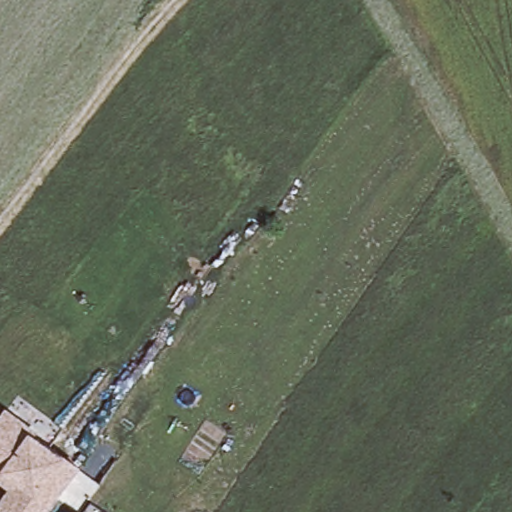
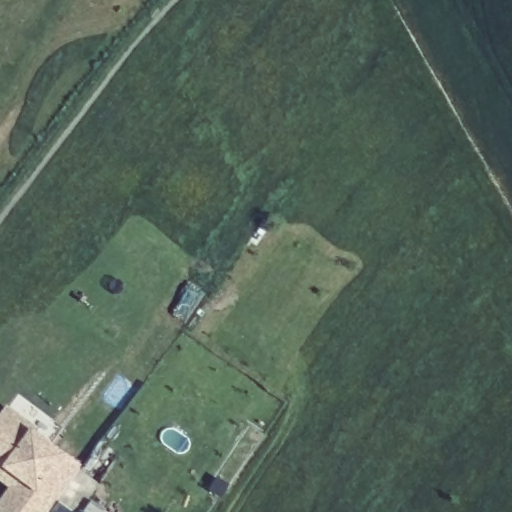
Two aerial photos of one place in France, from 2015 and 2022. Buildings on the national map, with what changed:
unchanged [(45,512),(0,512),(0,502),(11,488),(0,480),(0,417),(5,411),(17,395),(61,428),(47,447),(77,469),(45,512)]

